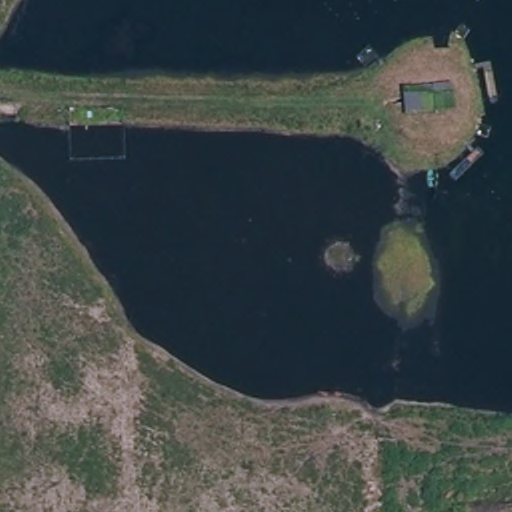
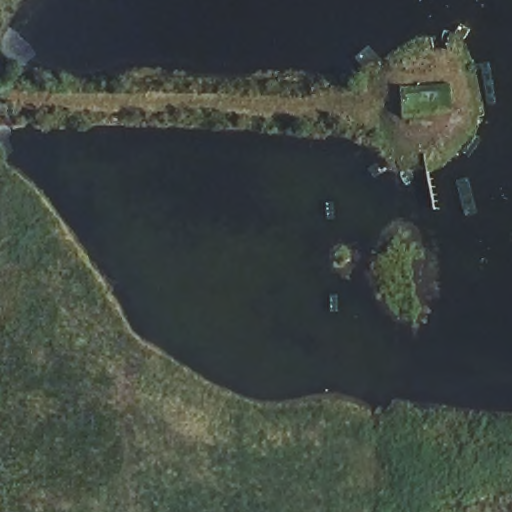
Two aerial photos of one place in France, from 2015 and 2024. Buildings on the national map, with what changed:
unchanged [(455,86),(459,123),(410,126),(407,91),(455,86)]

